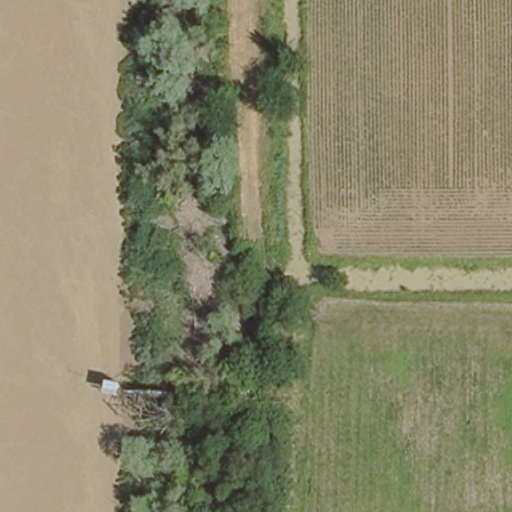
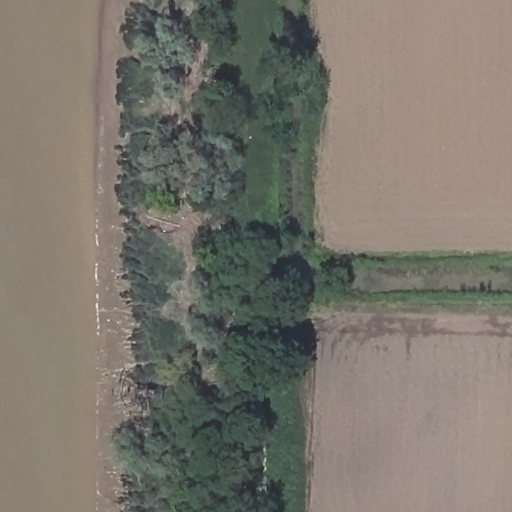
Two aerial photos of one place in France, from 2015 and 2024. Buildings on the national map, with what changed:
unchanged [(110,376),(128,377),(126,404),(108,403),(110,376)]

